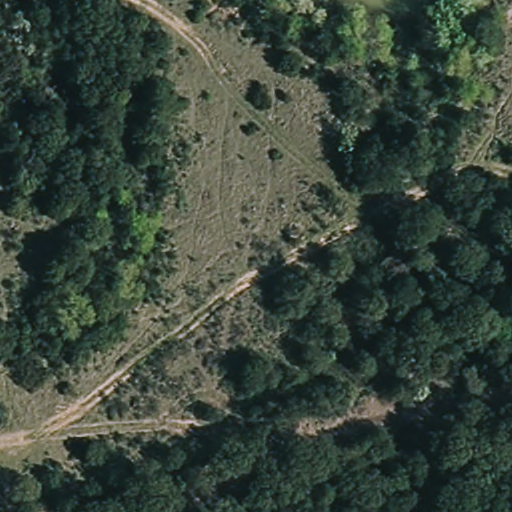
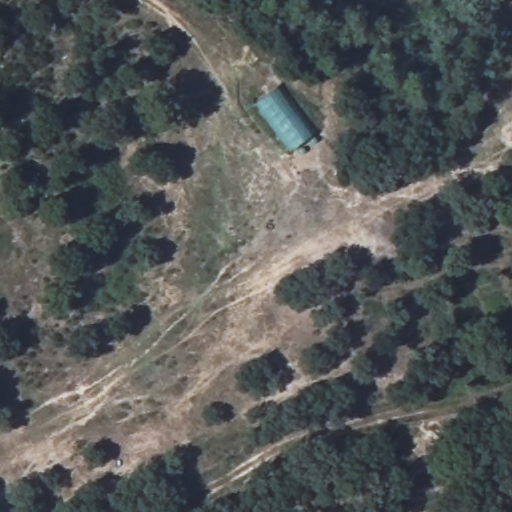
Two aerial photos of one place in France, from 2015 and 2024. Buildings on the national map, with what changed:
new [(281,85),(317,132),(291,151),(255,104),(281,85)]

